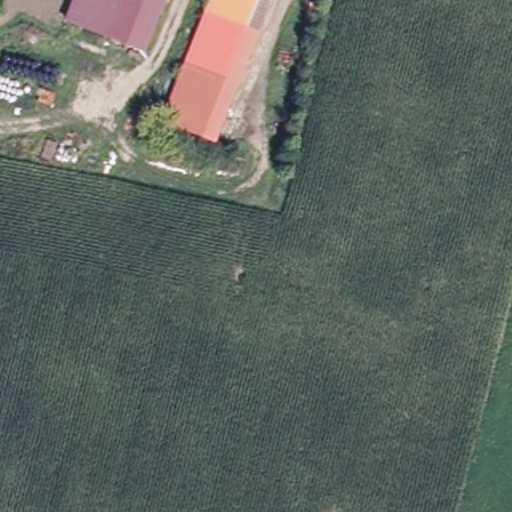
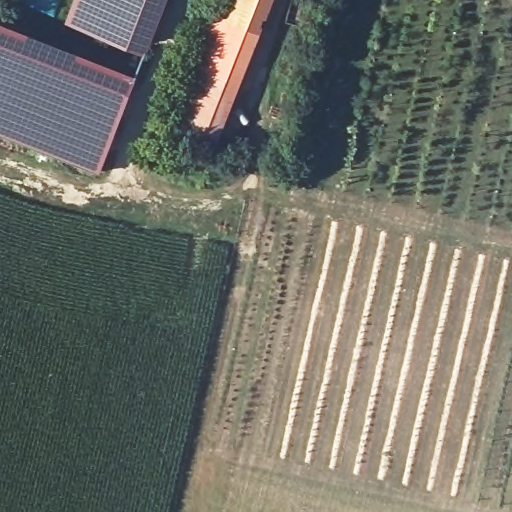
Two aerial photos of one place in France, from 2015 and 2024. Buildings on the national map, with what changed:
new [(19,0),(60,0),(54,17),(18,2),(19,0)]
unchanged [(77,0),(171,0),(152,49),(70,17),(77,0)]
unchanged [(211,0),(276,0),(222,141),(163,120),(211,0)]
new [(100,174),(44,153),(0,134),(0,18),(139,72),(100,174)]

